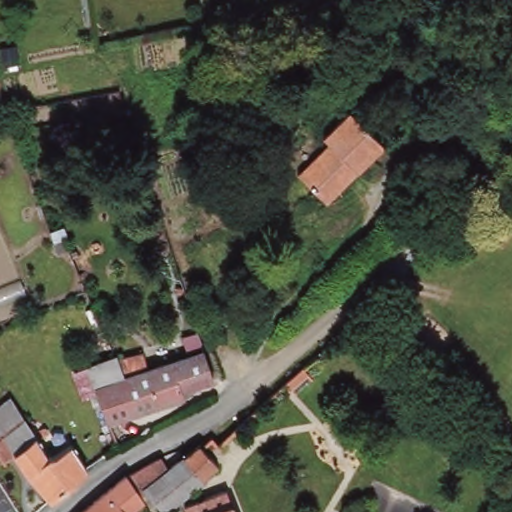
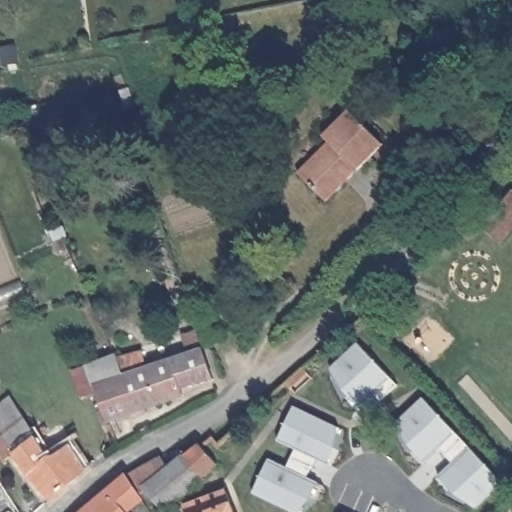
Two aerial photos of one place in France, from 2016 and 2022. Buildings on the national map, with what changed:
unchanged [(323,136),(351,109),(385,143),(328,201),(299,171),(329,142),(323,136)]
new [(379,399),(372,392),(358,405),(330,367),(358,342),(397,382),(379,399)]
unchanged [(149,375),(155,374),(160,392),(151,394),(154,401),(110,416),(98,391),(96,386),(90,370),(92,369),(120,358),(120,359),(140,351),(149,375)]
unchanged [(169,369),(174,367),(207,354),(208,357),(217,382),(160,392),(155,374),(169,369)]
new [(475,508),(438,476),(452,462),(438,447),(423,460),(395,423),(423,397),(502,481),(475,508)]
new [(315,456),(305,477),(318,484),(300,512),(295,512),(253,493),(269,458),(287,466),(295,448),(277,439),(294,406),(338,427),(328,462),(315,456)]
unchanged [(5,464),(0,458),(0,441),(26,421),(31,427),(41,437),(61,457),(74,445),(88,467),(54,498),(30,473),(17,453),(10,459),(5,464)]
unchanged [(163,464),(170,472),(172,475),(186,465),(205,449),(207,452),(220,466),(206,477),(208,479),(169,512),(166,512),(148,492),(144,495),(146,498),(134,508),(136,512),(88,512),(121,486),(163,464)]
unchanged [(234,512),(190,512),(187,504),(224,488),(234,512)]

